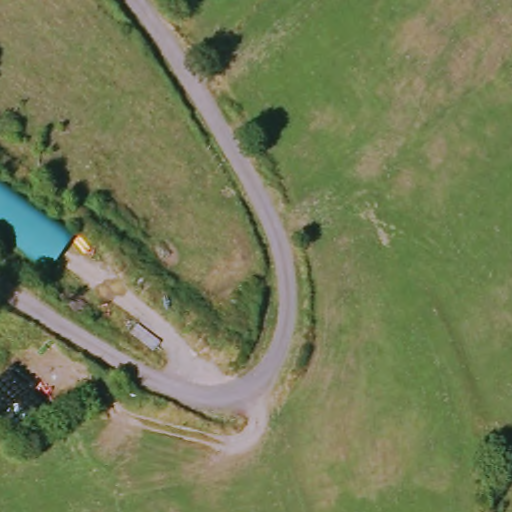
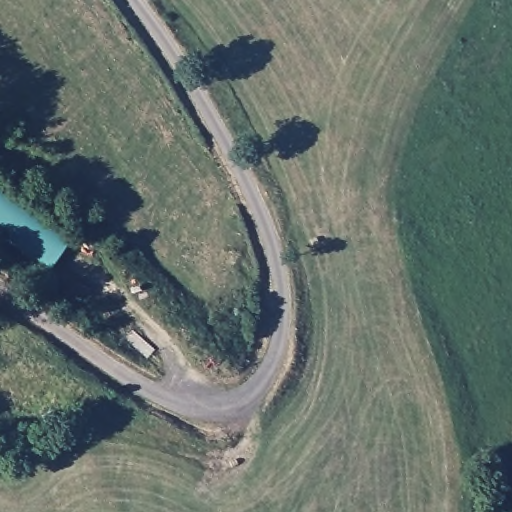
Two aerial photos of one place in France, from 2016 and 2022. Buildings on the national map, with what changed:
unchanged [(0,182),(65,241),(39,270),(0,234),(0,182)]

